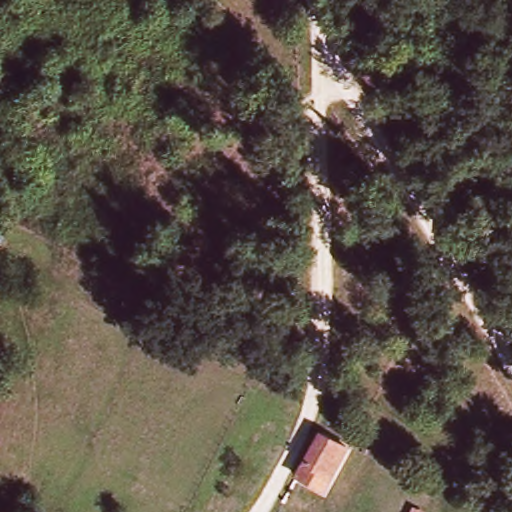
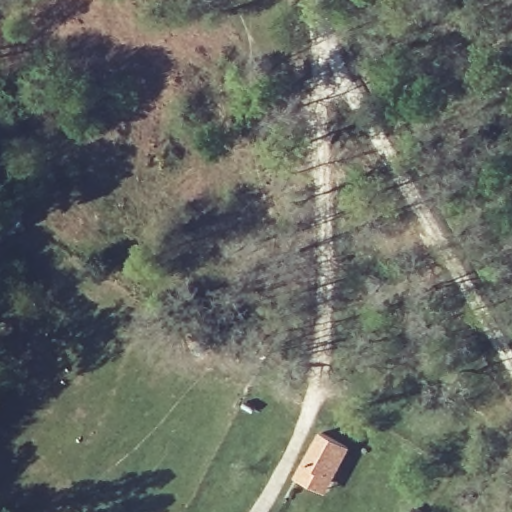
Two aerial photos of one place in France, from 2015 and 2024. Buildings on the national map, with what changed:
unchanged [(300,477),(324,434),(348,447),(325,491),(300,477)]

